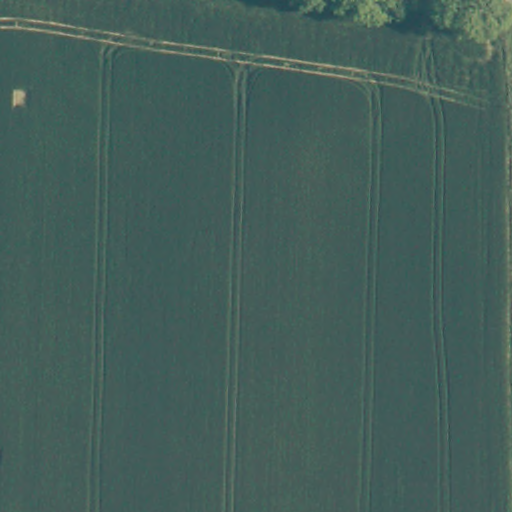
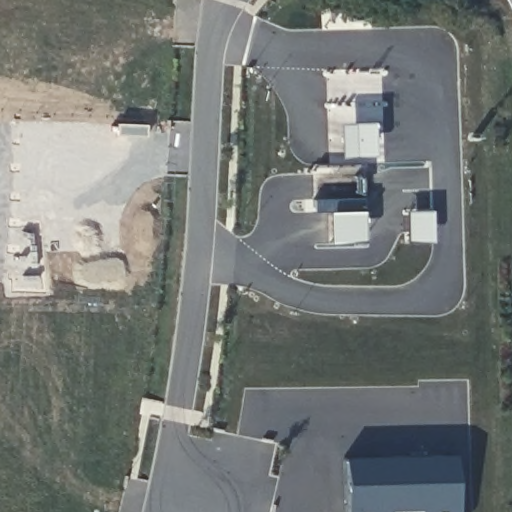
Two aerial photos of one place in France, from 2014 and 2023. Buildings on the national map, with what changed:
new [(374,122),(375,157),(340,158),(339,123),(374,122)]
new [(309,196),(359,196),(360,209),(309,210),(309,196)]
new [(359,209),(360,240),(327,240),(326,210),(359,209)]
new [(405,209),(427,210),(428,239),(405,240),(405,209)]
new [(453,512),(341,512),(340,456),(451,453),(453,512)]

